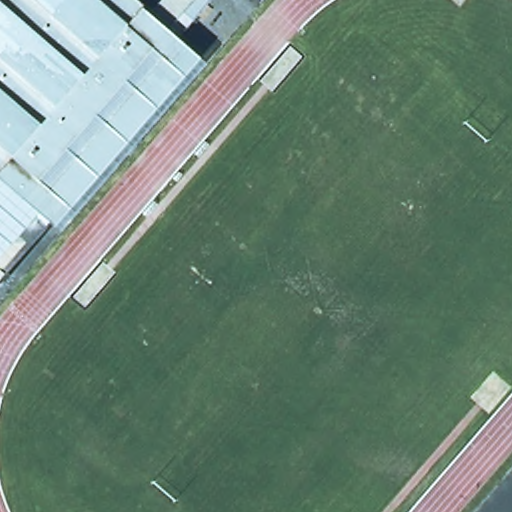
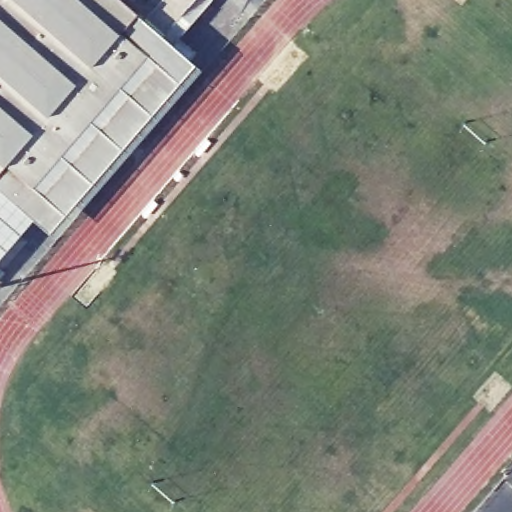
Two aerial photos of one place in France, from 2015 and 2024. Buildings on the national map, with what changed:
unchanged [(132,34),(150,51),(34,189),(14,171),(0,184),(0,0),(122,0),(145,20),(132,34)]
unchanged [(0,184),(14,171),(34,189),(150,51),(132,34),(145,20),(163,0),(207,0),(174,43),(204,70),(50,241),(32,228),(0,267),(0,184)]

